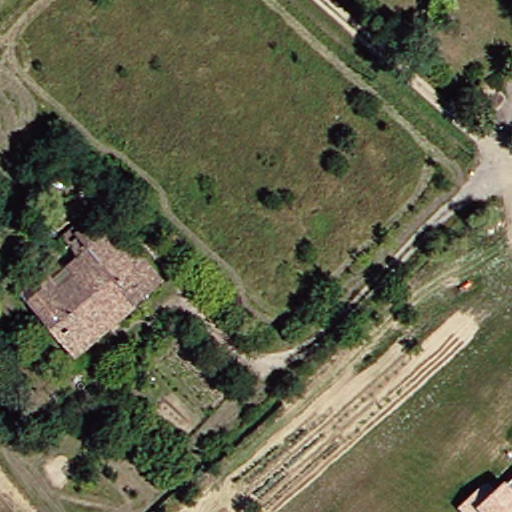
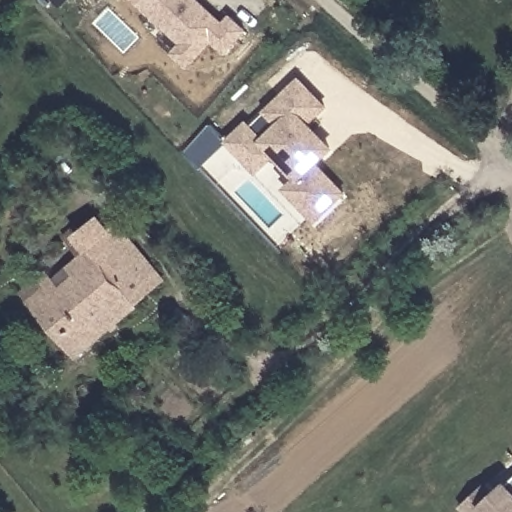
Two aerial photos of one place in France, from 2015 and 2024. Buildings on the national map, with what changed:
new [(222,23),(229,15),(244,29),(224,52),(210,39),(186,66),(171,53),(180,43),(132,0),(196,0),(222,23)]
new [(286,185),(298,173),(274,150),(256,169),(226,140),(245,120),(262,137),(278,122),(265,108),(297,74),(325,100),(305,119),(330,142),(315,157),(345,187),(316,215),(286,185)]
unchanged [(30,311),(91,259),(76,242),(64,228),(86,209),(98,222),(105,217),(154,274),(65,352),(30,311)]
unchanged [(487,512),(483,508),(512,480),(512,512),(487,512)]

